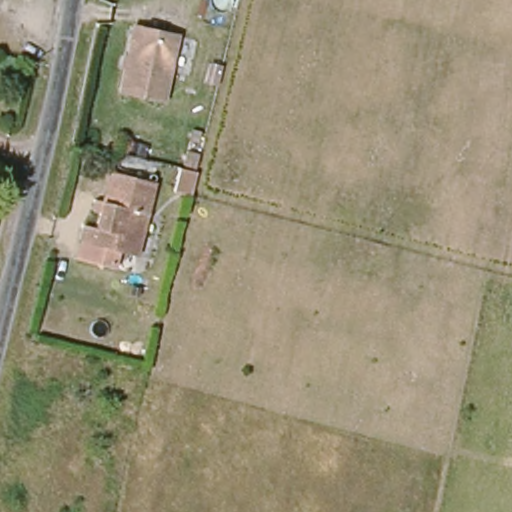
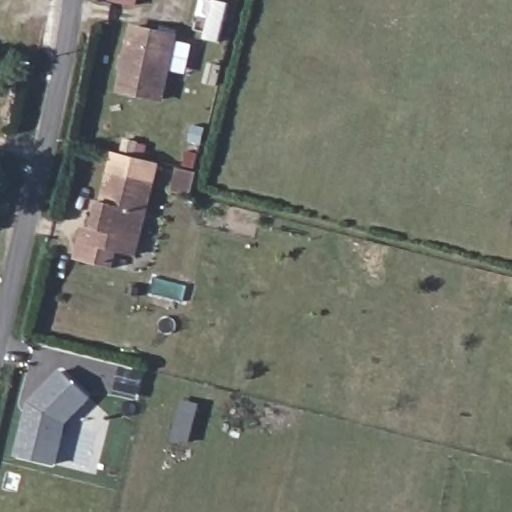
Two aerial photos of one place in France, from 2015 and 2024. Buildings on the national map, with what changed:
new [(138,7),(109,1),(109,0),(140,0),(138,7)]
unchanged [(131,25),(173,35),(158,99),(116,89),(131,25)]
unchanged [(142,174),(124,250),(113,248),(107,267),(71,259),(79,222),(88,224),(91,211),(83,209),(86,194),(96,195),(102,165),(142,174)]
new [(33,404),(64,372),(92,400),(68,425),(58,465),(21,456),(33,404)]

